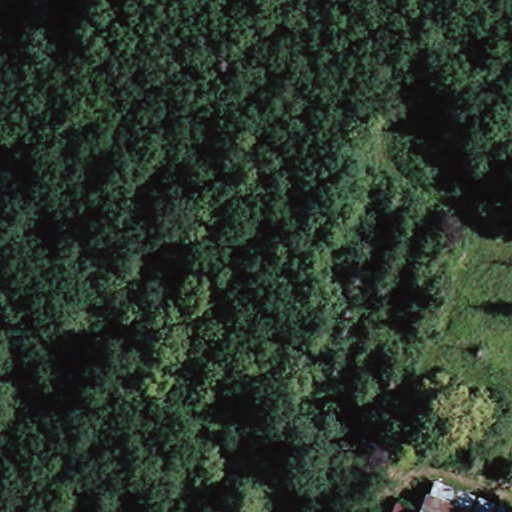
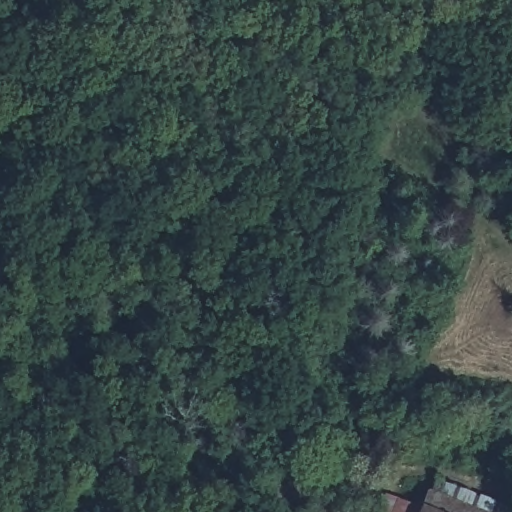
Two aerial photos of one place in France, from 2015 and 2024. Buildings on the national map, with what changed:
unchanged [(512,512),(396,512),(400,497),(420,505),(436,475),(512,503),(512,512)]

